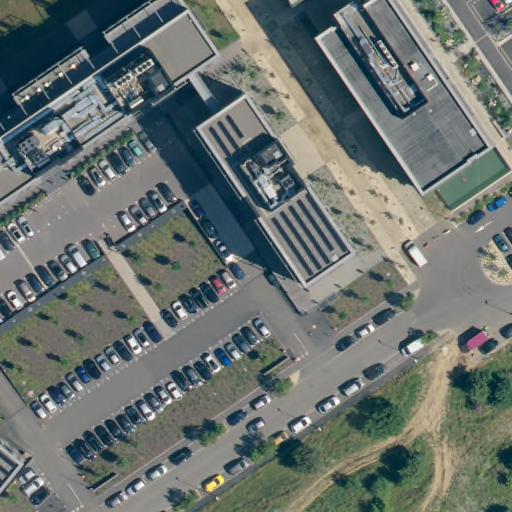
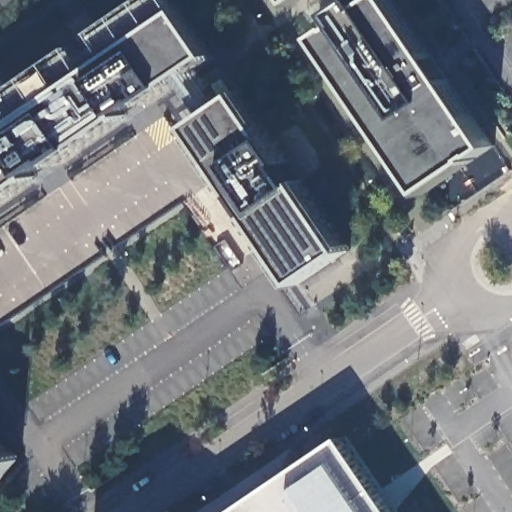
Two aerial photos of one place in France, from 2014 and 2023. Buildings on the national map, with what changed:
unchanged [(21,107),(13,95),(83,49),(89,57),(109,45),(102,34),(151,0),(179,0),(185,9),(216,54),(0,201),(0,120),(21,107)]
unchanged [(301,0),(297,2),(295,0),(301,0)]
unchanged [(320,37),(345,22),(340,14),(362,0),(363,0),(367,6),(376,0),(395,0),(496,146),(428,192),(320,37)]
unchanged [(301,285),(193,127),(243,92),(351,250),(301,285)]
new [(343,436),(395,512),(233,512),(343,436)]
unchanged [(0,485),(0,442),(21,459),(0,485)]

